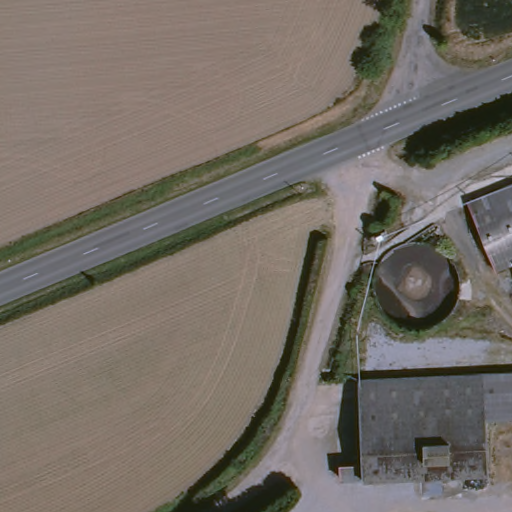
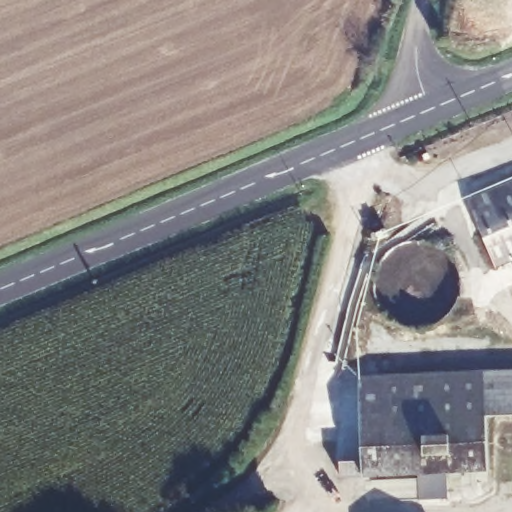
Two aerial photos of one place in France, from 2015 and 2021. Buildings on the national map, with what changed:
unchanged [(478,201),(512,186),(512,266),(507,268),(478,201)]
unchanged [(512,416),(492,417),(490,371),(512,370),(512,416)]
unchanged [(490,371),(496,469),(371,476),(366,380),(490,371)]

